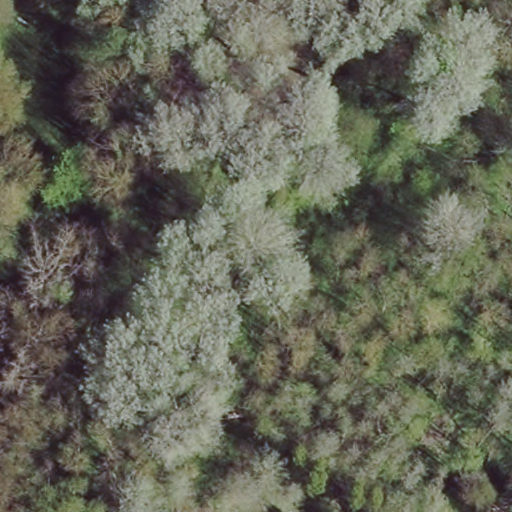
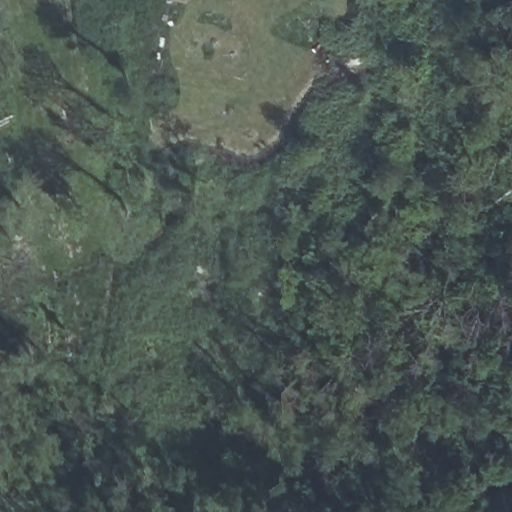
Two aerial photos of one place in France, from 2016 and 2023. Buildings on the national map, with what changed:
[]

